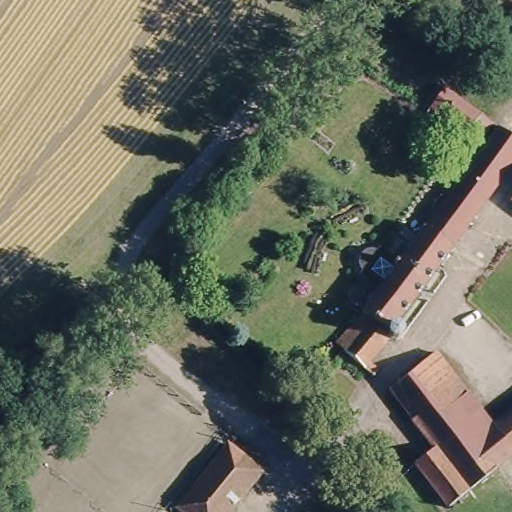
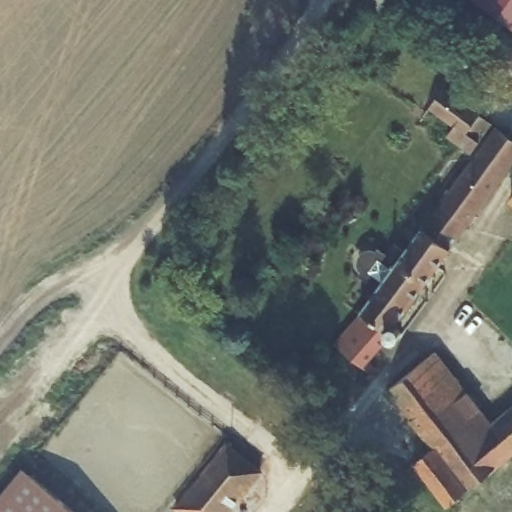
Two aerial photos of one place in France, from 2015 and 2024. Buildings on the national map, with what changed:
new [(512,26),(477,0),(512,0),(512,26)]
unchanged [(488,124),(495,130),(477,152),(467,144),(474,135),(475,133),(439,105),(457,80),(463,84),(473,71),(502,93),(492,106),(498,111),(488,124)]
unchanged [(377,297),(360,282),(357,280),(364,271),(354,263),(363,252),(373,259),(382,247),(385,249),(397,257),(403,249),(410,254),(501,133),(512,141),(512,171),(391,332),(397,337),(388,348),(383,343),(367,363),(381,377),(371,387),(341,357),(335,351),(377,297)]
unchanged [(512,190),(512,199),(507,196),(512,190)]
unchanged [(446,512),(429,490),(415,471),(432,457),(388,396),(441,354),(493,424),(512,409),(512,455),(490,473),(492,475),(482,482),(446,512)]
unchanged [(227,512),(175,512),(173,511),(230,447),(261,475),(227,512)]
new [(0,512),(0,497),(23,468),(77,512),(0,512)]

